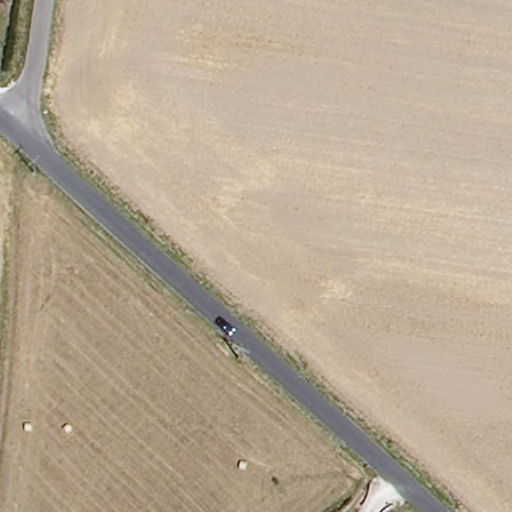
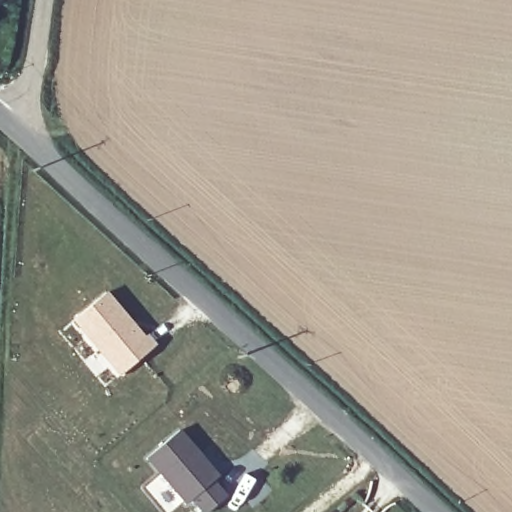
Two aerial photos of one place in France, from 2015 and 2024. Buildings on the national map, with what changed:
new [(107,288),(156,345),(119,376),(71,319),(107,288)]
new [(220,476),(215,480),(227,495),(209,512),(201,512),(190,500),(187,502),(146,456),(181,427),(220,476)]

